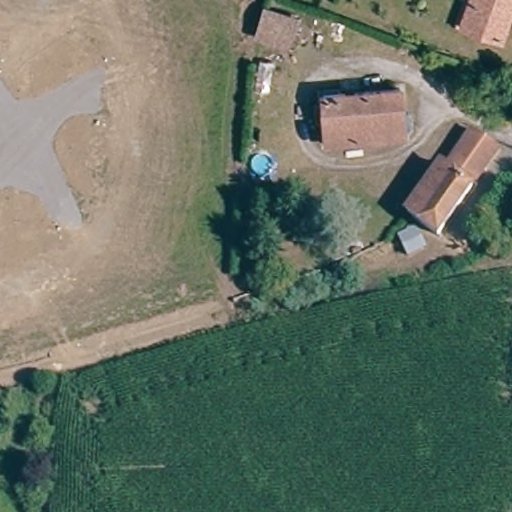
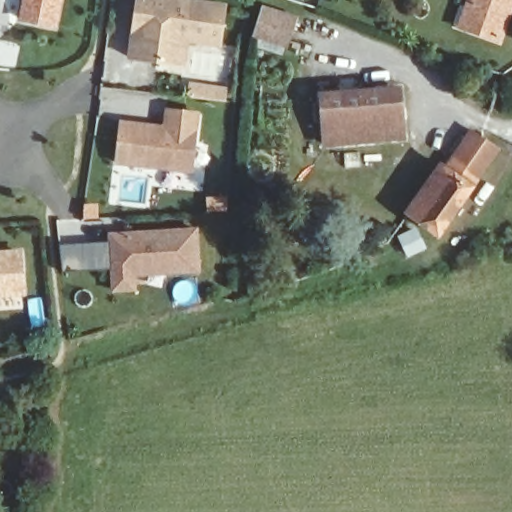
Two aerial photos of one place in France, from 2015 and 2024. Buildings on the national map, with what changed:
new [(24,0),(64,0),(58,29),(21,21),(24,0)]
new [(222,48),(189,44),(186,70),(128,61),(137,0),(204,0),(227,3),(222,48)]
unchanged [(508,0),(506,6),(512,7),(512,9),(502,36),(482,28),(464,21),(472,0),(508,0)]
unchanged [(286,46),(256,36),(264,10),(295,19),(286,46)]
unchanged [(404,138),(326,145),(322,96),(400,90),(404,138)]
new [(116,164),(121,121),(164,125),(166,107),(201,111),(193,172),(116,164)]
unchanged [(439,236),(407,215),(441,165),(451,163),(473,131),(499,149),(439,236)]
new [(138,278),(138,293),(113,294),(109,235),(200,228),(202,271),(138,278)]
unchanged [(414,230),(423,249),(410,256),(401,237),(414,230)]
new [(21,250),(25,295),(0,297),(0,252),(21,250)]

